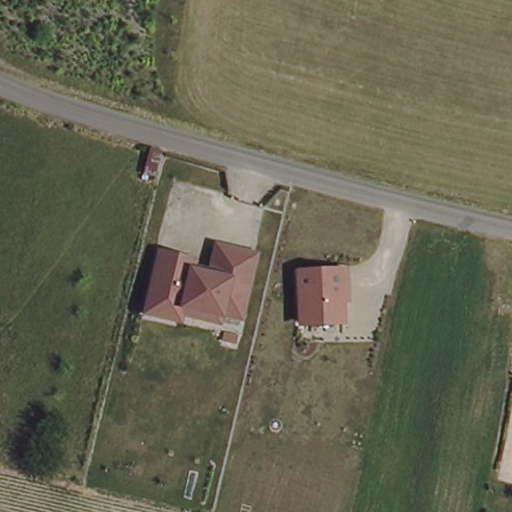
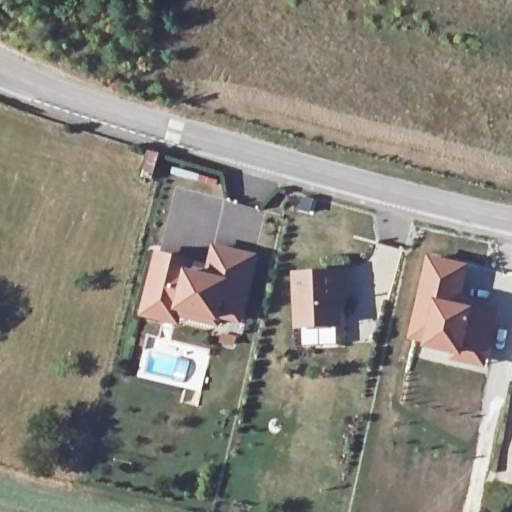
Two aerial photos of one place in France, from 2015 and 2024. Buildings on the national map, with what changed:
unchanged [(161,151),(153,176),(141,174),(148,148),(161,151)]
unchanged [(148,296),(158,254),(186,261),(191,262),(190,268),(208,273),(214,246),(219,247),(253,255),(238,319),(219,314),(217,323),(178,314),(176,321),(143,313),(148,296)]
new [(428,254),(469,263),(462,302),(479,306),(464,361),(424,347),(424,345),(407,339),(428,254)]
unchanged [(341,272),(341,289),(337,290),(339,322),(299,324),(297,274),(341,272)]
new [(479,306),(498,309),(486,367),(464,361),(479,306)]

